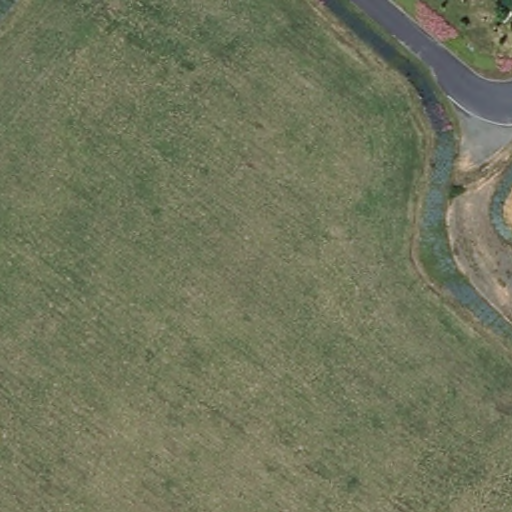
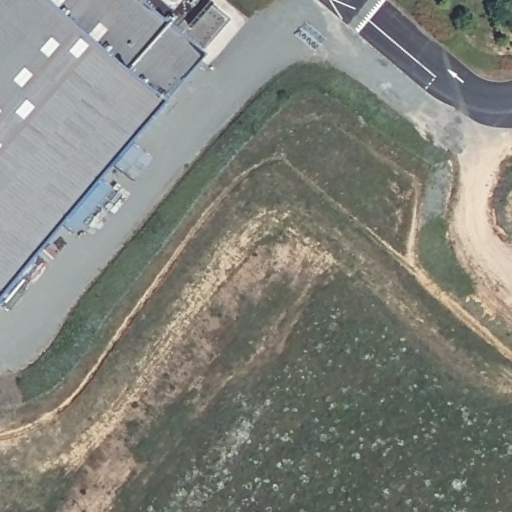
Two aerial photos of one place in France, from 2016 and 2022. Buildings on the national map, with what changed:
new [(201,0),(206,4),(227,20),(201,55),(161,101),(0,294),(0,0),(201,0)]

